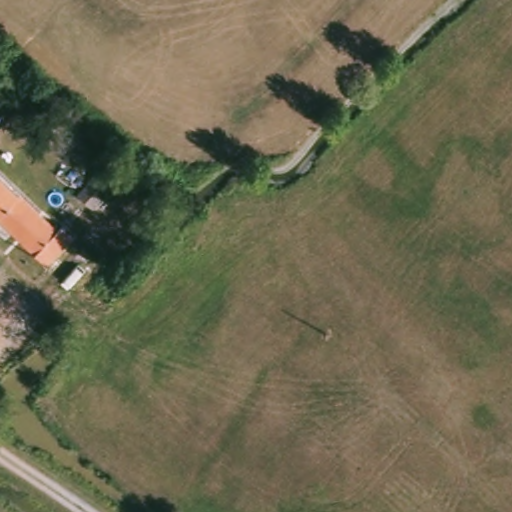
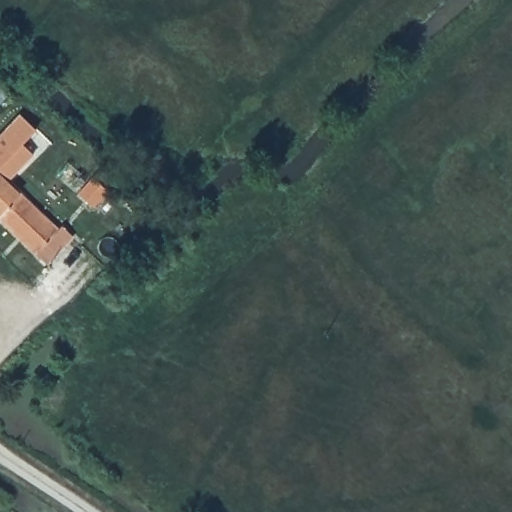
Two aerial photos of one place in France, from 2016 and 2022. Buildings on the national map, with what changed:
demolished [(6,118),(0,113),(0,108),(13,93),(21,101),(6,118)]
new [(36,128),(22,142),(33,154),(8,179),(1,173),(0,172),(0,134),(20,114),(36,128)]
unchanged [(101,204),(85,190),(107,167),(122,181),(101,204)]
unchanged [(0,172),(1,173),(0,175),(0,172)]
unchanged [(70,224),(78,234),(49,262),(0,215),(0,175),(1,173),(63,231),(70,224)]

